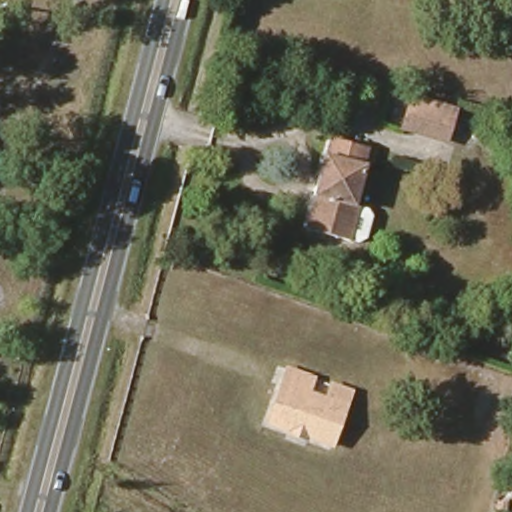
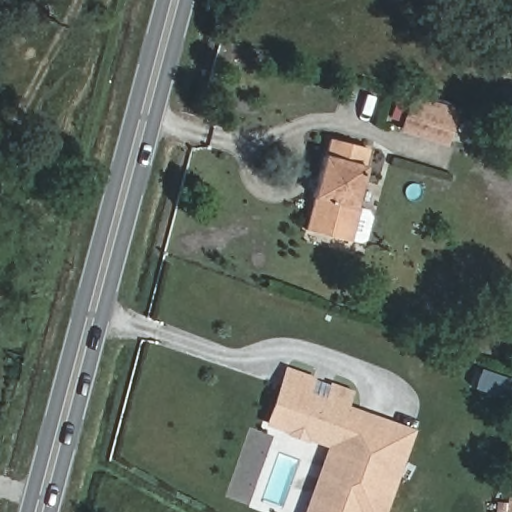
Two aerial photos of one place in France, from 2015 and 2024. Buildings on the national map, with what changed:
unchanged [(447,139),(402,125),(412,93),(456,106),(447,139)]
unchanged [(359,201),(373,205),(377,211),(372,233),(366,237),(354,235),(311,225),(333,135),(375,144),(359,201)]
unchanged [(332,441),(269,418),(289,363),(314,373),(309,388),(327,395),(332,380),(351,387),(332,441)]
new [(386,512),(306,512),(332,441),(345,405),(416,430),(386,512)]

